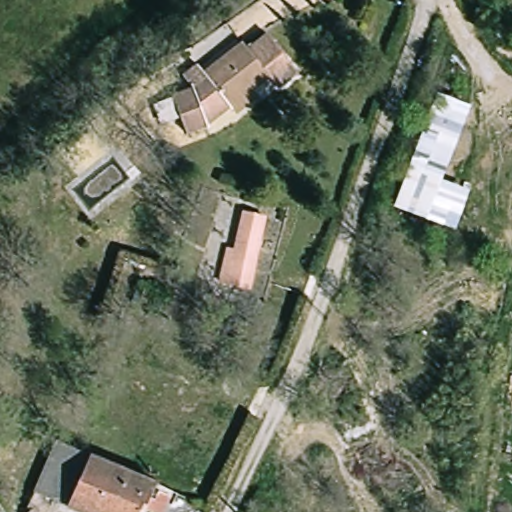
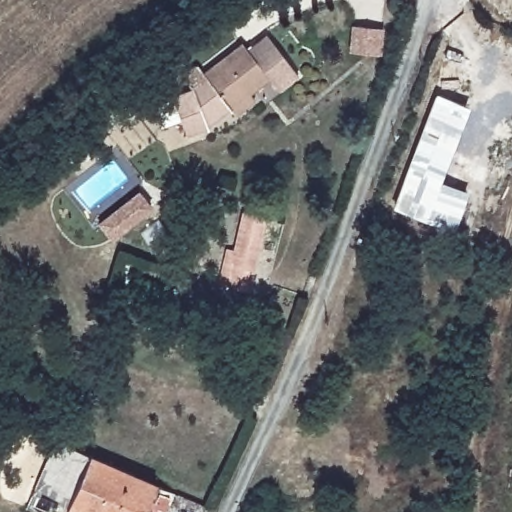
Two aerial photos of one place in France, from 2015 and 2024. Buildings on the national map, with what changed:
new [(380,52),(352,51),(354,28),(381,30),(380,52)]
unchanged [(240,118),(232,107),(208,120),(210,125),(188,134),(173,96),(204,84),(209,76),(206,72),(243,44),(249,49),(266,35),(284,56),(298,72),(279,87),(271,80),(255,92),(262,101),(240,118)]
unchanged [(442,181),(469,192),(455,232),(393,207),(436,92),(470,106),(442,181)]
unchanged [(265,220),(250,286),(226,280),(240,215),(265,220)]
unchanged [(135,512),(75,512),(62,507),(47,499),(67,447),(84,454),(148,482),(135,512)]

